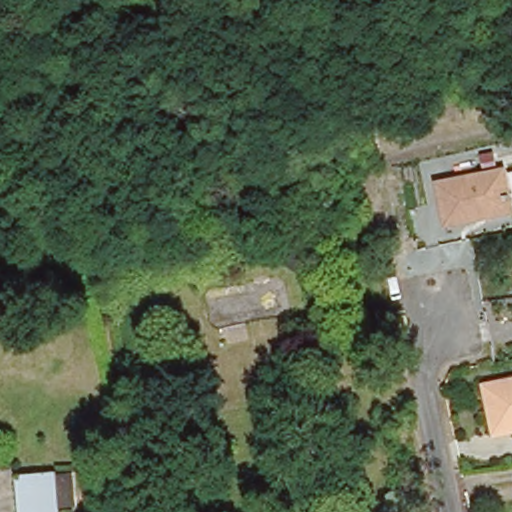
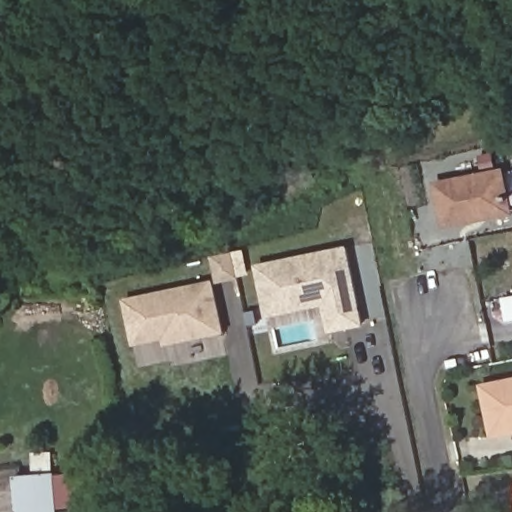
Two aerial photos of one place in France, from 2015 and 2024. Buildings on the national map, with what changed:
unchanged [(476,214),(445,219),(439,180),(502,170),(507,204),(508,209),(476,214)]
new [(348,245),(365,325),(330,333),(323,305),(267,317),(256,264),(348,245)]
new [(214,279),(225,333),(166,345),(164,338),(135,345),(125,298),(214,279)]
unchanged [(482,381),(512,376),(512,424),(488,427),(482,381)]
unchanged [(54,466),(59,512),(18,512),(15,470),(54,466)]

